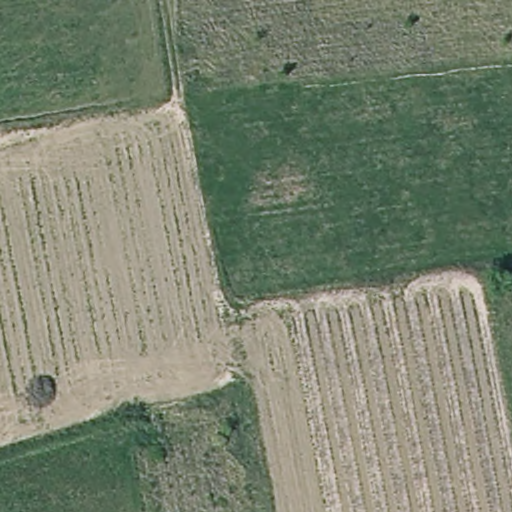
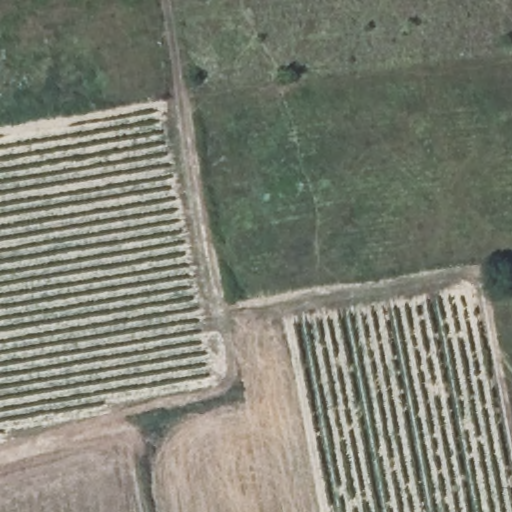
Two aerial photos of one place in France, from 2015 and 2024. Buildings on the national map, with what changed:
[]

